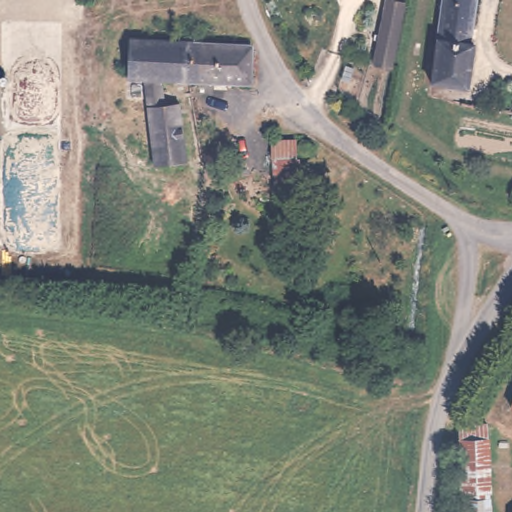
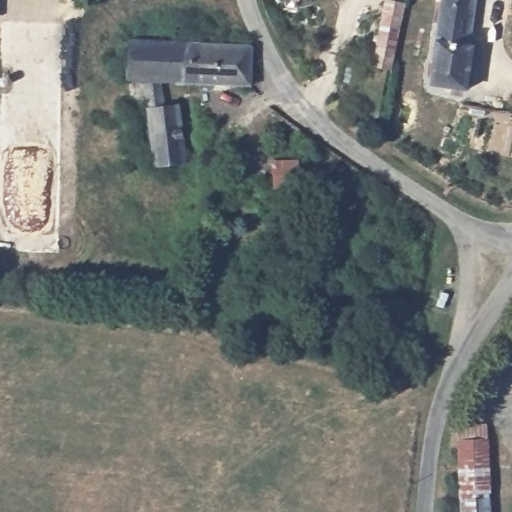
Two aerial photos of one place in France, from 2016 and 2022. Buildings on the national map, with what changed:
unchanged [(387,0),(390,0),(405,4),(393,66),(375,63),(387,0)]
unchanged [(475,43),(468,88),(433,82),(446,0),(477,0),(471,42),(475,43)]
unchanged [(252,84),(161,80),(164,104),(180,102),(187,162),(155,165),(145,79),(128,79),(129,38),(253,45),(253,50),(252,84)]
unchanged [(301,174),(303,174),(305,205),(279,205),(277,157),(301,156),(301,174)]
unchanged [(508,408),(512,395),(512,410),(508,408)]
unchanged [(465,497),(462,425),(490,423),(492,497),(465,497)]
unchanged [(493,512),(465,512),(465,497),(492,497),(493,512)]

